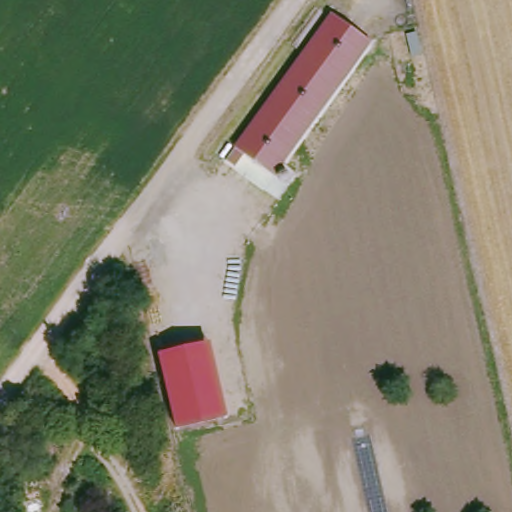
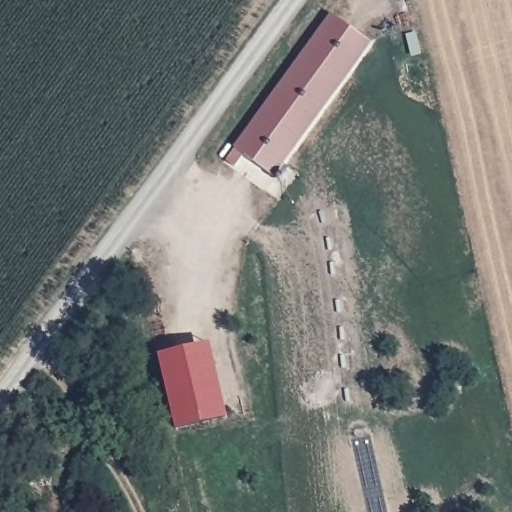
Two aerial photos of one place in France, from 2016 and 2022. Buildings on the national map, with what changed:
unchanged [(242,151),(234,162),(226,156),(235,143),(330,10),(371,40),(274,174),(242,151)]
unchanged [(158,351),(208,339),(225,415),(175,423),(158,351)]

